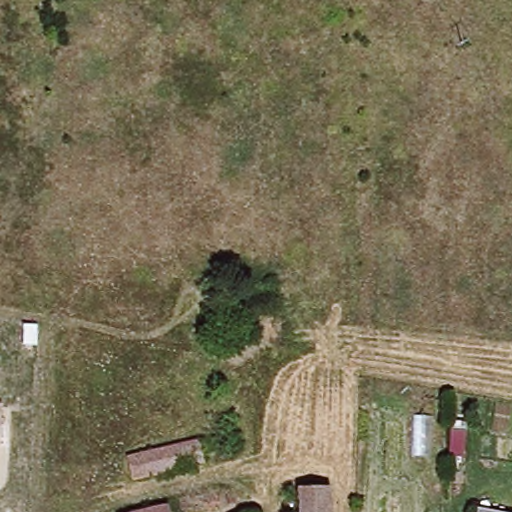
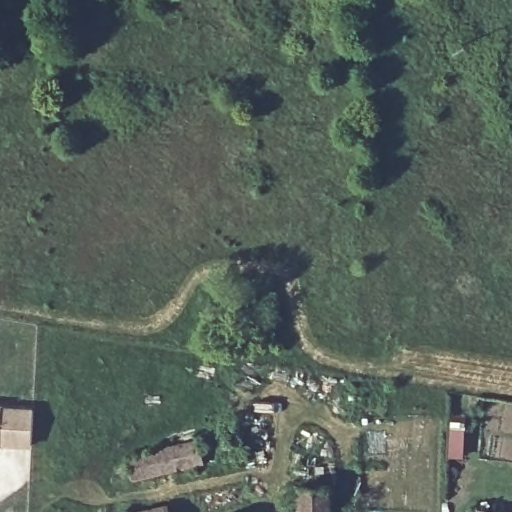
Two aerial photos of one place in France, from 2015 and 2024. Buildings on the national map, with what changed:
new [(33,407),(31,445),(0,444),(0,406),(33,407)]
demolished [(292,422),(290,445),(273,442),(274,421),(292,422)]
unchanged [(128,477),(127,451),(175,446),(174,432),(191,431),(193,443),(197,469),(128,477)]
unchanged [(324,489),(324,512),(294,512),(295,487),(324,489)]
unchanged [(170,512),(138,512),(168,507),(170,512)]
unchanged [(476,512),(476,510),(488,512),(476,512)]
unchanged [(241,512),(234,512),(241,511),(241,512)]

